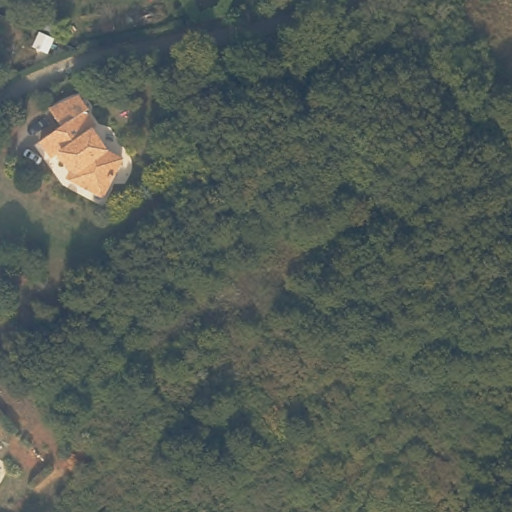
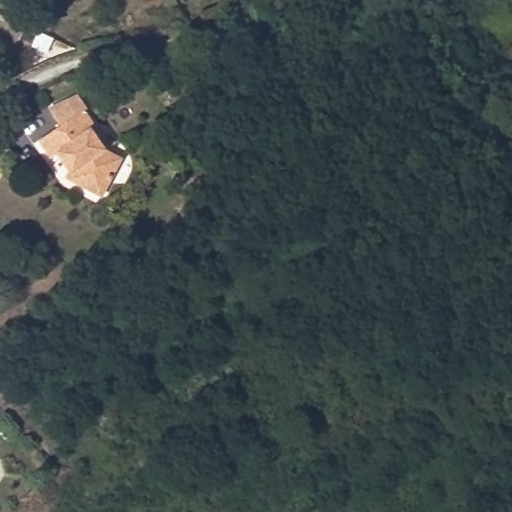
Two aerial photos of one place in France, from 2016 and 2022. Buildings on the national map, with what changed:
unchanged [(84,107),(81,110),(92,125),(89,128),(104,151),(117,157),(97,194),(64,177),(67,168),(56,150),(48,156),(37,140),(56,127),(44,108),(75,94),(84,107)]

